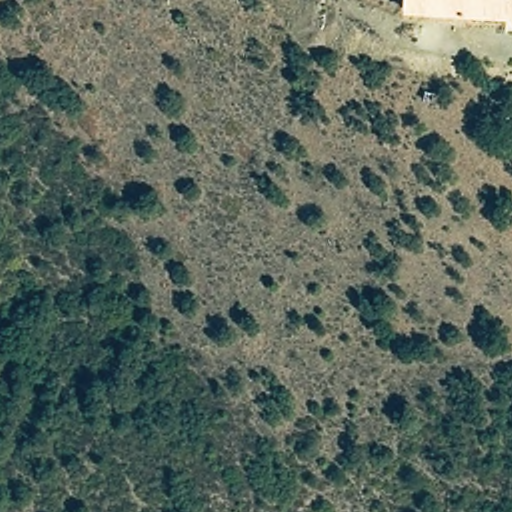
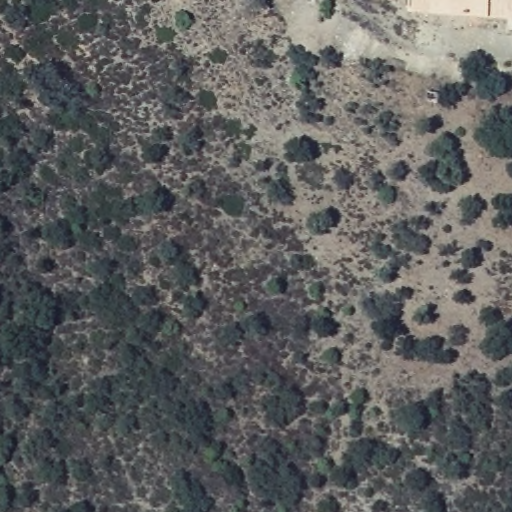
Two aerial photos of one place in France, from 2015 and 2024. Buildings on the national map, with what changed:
unchanged [(512,25),(407,18),(409,0),(512,0),(512,25)]

